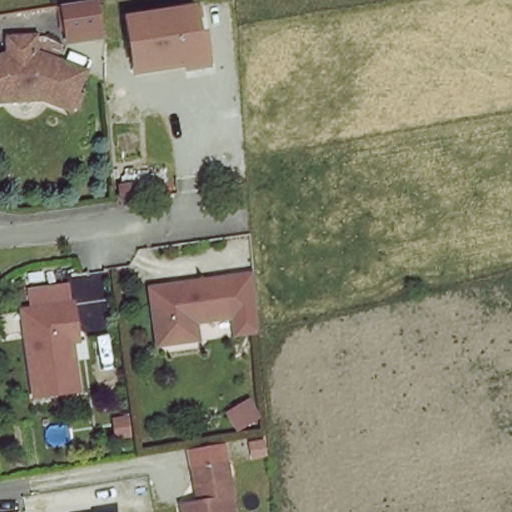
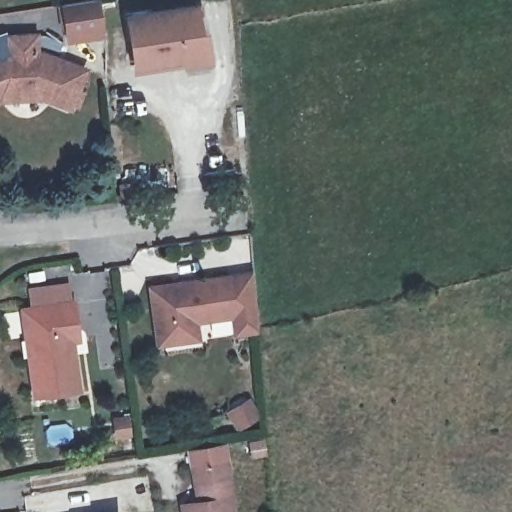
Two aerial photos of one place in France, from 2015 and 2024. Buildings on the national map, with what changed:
unchanged [(196,1),(200,28),(206,27),(213,64),(136,75),(122,11),(196,1)]
unchanged [(61,9),(94,4),(95,14),(100,39),(97,39),(93,40),(92,34),(63,39),(58,9),(61,9)]
unchanged [(67,97),(29,83),(4,86),(0,87),(0,46),(2,45),(1,29),(14,28),(31,26),(58,35),(56,53),(81,61),(74,80),(83,82),(76,101),(67,97)]
unchanged [(157,345),(150,289),(227,278),(232,317),(193,322),(195,340),(157,345)]
unchanged [(34,397),(25,338),(21,312),(26,311),(73,304),(78,333),(79,340),(71,341),(79,390),(34,397)]
unchanged [(186,505),(201,501),(198,481),(195,467),(228,460),(231,475),(235,496),(233,496),(235,512),(187,512),(186,505)]

